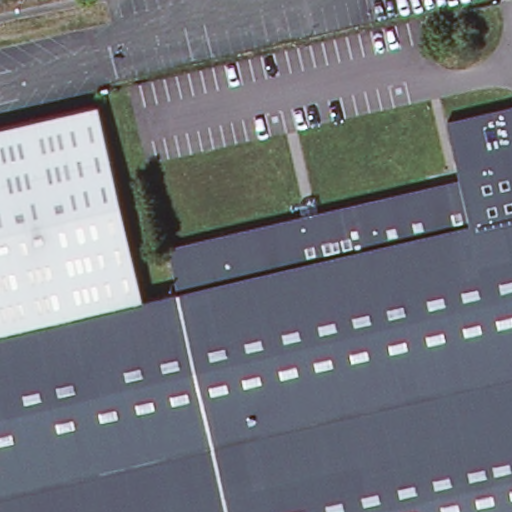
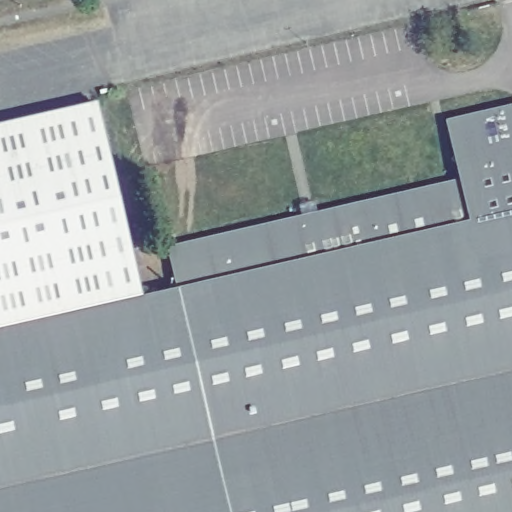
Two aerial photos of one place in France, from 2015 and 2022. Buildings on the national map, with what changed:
unchanged [(95,103),(141,298),(175,290),(164,246),(299,215),(296,203),(312,199),(315,211),(457,178),(444,120),(512,104),(512,512),(0,512),(0,124),(95,103)]

